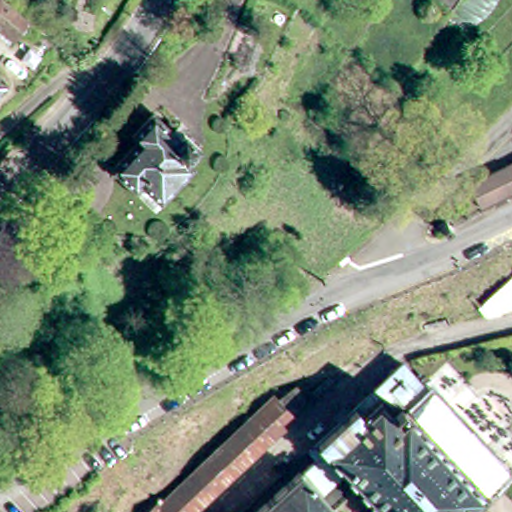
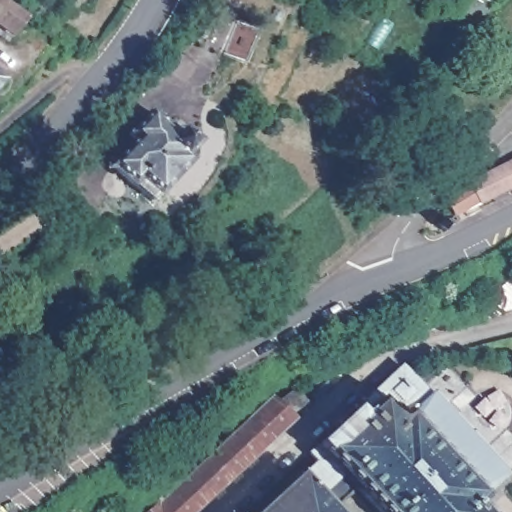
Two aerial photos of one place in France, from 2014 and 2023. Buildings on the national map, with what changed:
unchanged [(10,44),(0,36),(0,0),(10,0),(34,19),(10,44)]
unchanged [(265,30),(251,65),(227,54),(241,19),(265,30)]
unchanged [(0,92),(0,76),(8,84),(0,92)]
unchanged [(118,164),(141,139),(136,134),(157,112),(183,136),(188,131),(202,143),(190,156),(196,163),(158,202),(118,164)]
unchanged [(512,160),(512,190),(481,205),(469,182),(512,160)]
unchanged [(491,304),(512,285),(512,314),(494,319),(485,310),(491,304)]
unchanged [(485,512),(379,512),(376,508),(364,495),(361,493),(358,489),(326,453),(324,451),(378,402),(409,373),(411,372),(411,373),(431,395),(435,399),(412,420),(414,422),(489,502),(492,505),(485,512)]
unchanged [(232,445),(284,395),(289,400),(306,386),(318,399),(302,413),(305,416),(203,512),(157,512),(178,493),(232,445)]
unchanged [(440,398),(512,477),(512,481),(489,502),(414,422),(440,398)]
unchanged [(315,460),(320,455),(324,451),(326,453),(358,489),(361,493),(364,495),(344,512),(270,512),(319,466),(315,460)]

